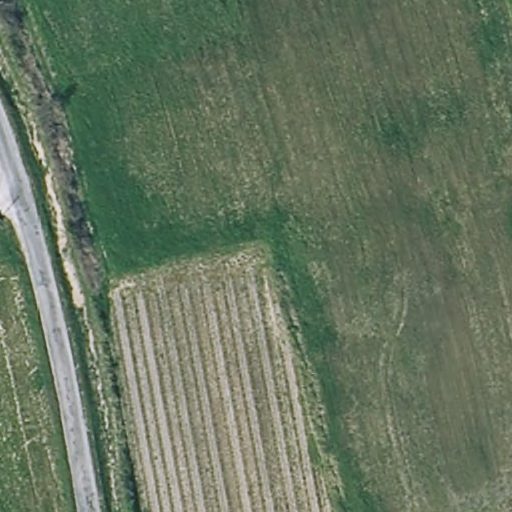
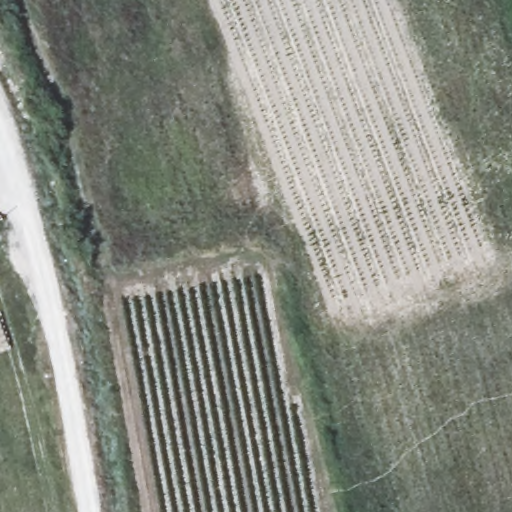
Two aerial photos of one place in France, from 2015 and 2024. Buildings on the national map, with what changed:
[]

